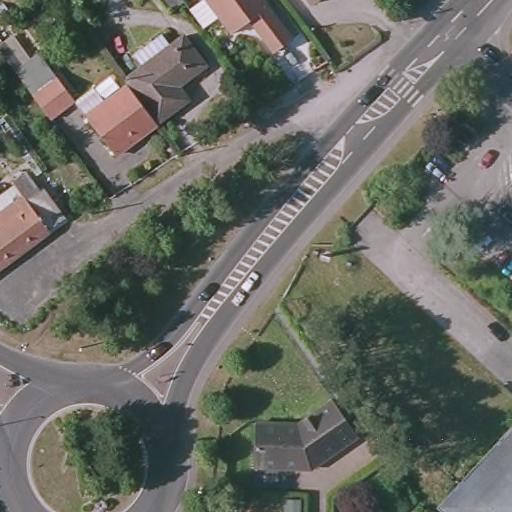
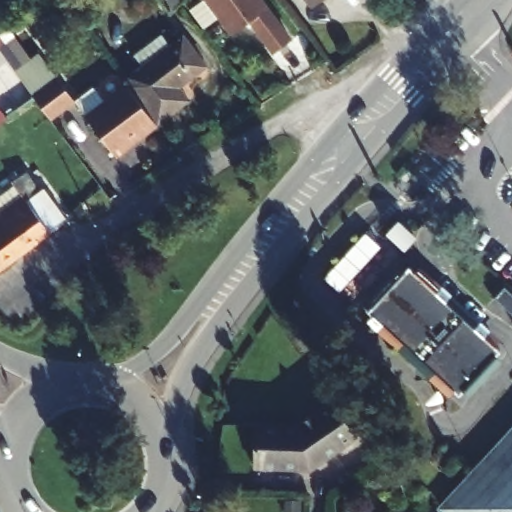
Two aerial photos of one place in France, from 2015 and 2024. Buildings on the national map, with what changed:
unchanged [(182,0),(184,2),(169,12),(160,0),(182,0)]
unchanged [(190,11),(203,0),(262,0),(292,40),(276,52),(252,20),(234,34),(221,17),(205,30),(192,13),(190,11)]
unchanged [(334,0),(317,14),(306,0),(334,0)]
new [(0,49),(0,32),(8,27),(32,59),(40,52),(60,74),(52,83),(34,97),(0,49)]
unchanged [(123,91),(124,82),(137,71),(129,60),(157,39),(166,50),(179,40),(201,70),(174,91),(184,105),(152,129),(124,91),(123,91)]
unchanged [(70,107),(46,125),(28,101),(52,83),(70,107)]
unchanged [(89,93),(101,109),(124,91),(152,129),(111,160),(70,107),(89,93)]
new [(7,117),(0,122),(0,106),(7,117)]
unchanged [(15,196),(11,192),(26,182),(40,201),(44,198),(65,227),(0,275),(0,206),(15,196)]
new [(457,232),(468,219),(476,226),(465,239),(457,232)]
new [(391,234),(399,224),(413,237),(404,246),(391,234)]
new [(324,278),(366,233),(381,247),(339,292),(324,278)]
new [(409,267),(438,293),(441,290),(449,297),(445,301),(476,329),(479,326),(487,332),(484,336),(501,352),(460,397),(368,312),(409,267)]
new [(505,287),(512,294),(512,314),(494,298),(505,287)]
unchanged [(358,436),(311,469),(255,467),(256,445),(256,423),(299,424),(333,400),(358,436)]
unchanged [(462,488),(464,492),(509,442),(506,440),(512,433),(512,512),(440,512),(462,488)]

